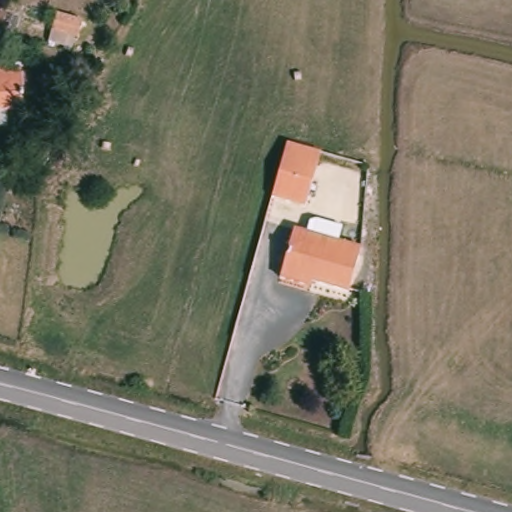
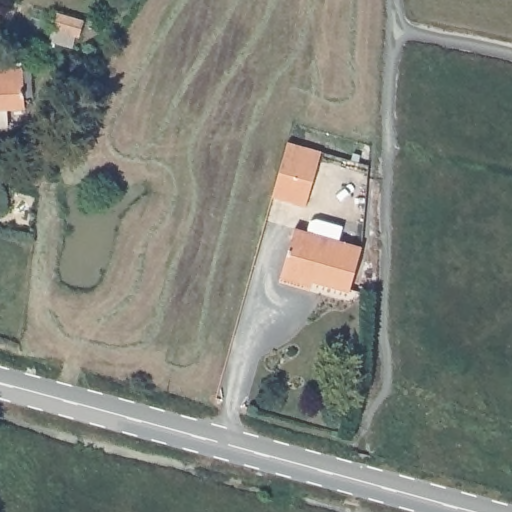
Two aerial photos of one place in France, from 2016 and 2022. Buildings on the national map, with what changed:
unchanged [(3,75),(6,109),(0,110),(0,75),(3,75)]
unchanged [(273,199),(279,176),(289,145),(320,154),(311,185),(305,209),(273,199)]
unchanged [(308,237),(311,227),(319,220),(345,228),(341,245),(364,251),(349,294),(307,282),(305,291),(281,284),(297,234),(308,237)]

